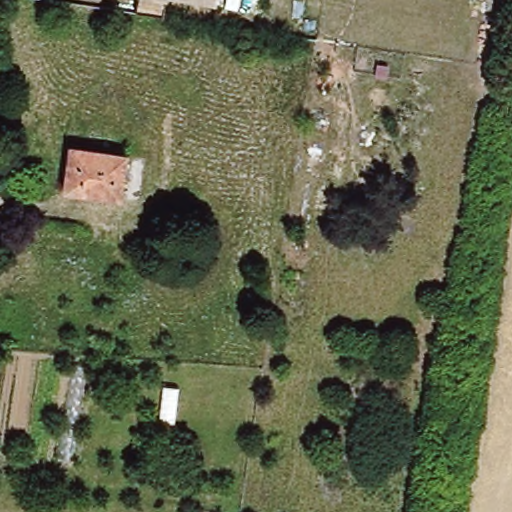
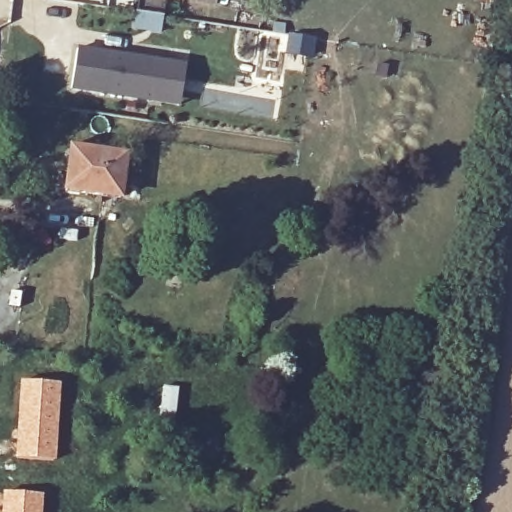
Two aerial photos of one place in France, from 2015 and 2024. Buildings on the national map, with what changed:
unchanged [(158,0),(219,0),(217,10),(158,0)]
new [(70,41),(128,51),(130,40),(167,47),(158,106),(62,89),(70,41)]
unchanged [(120,156),(114,196),(60,187),(70,148),(120,156)]
new [(19,380),(61,382),(56,462),(12,458),(19,380)]
new [(2,491),(44,493),(42,512),(0,512),(2,491)]

